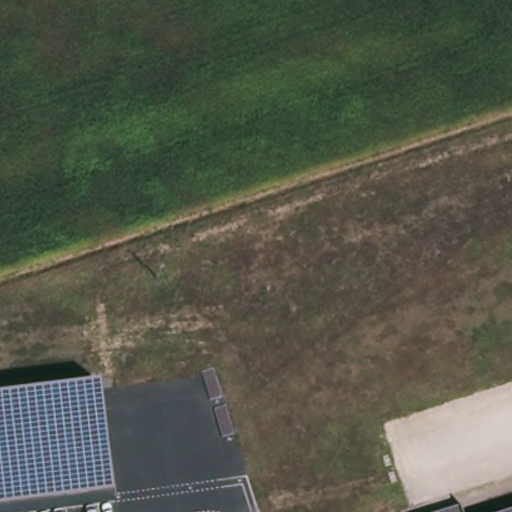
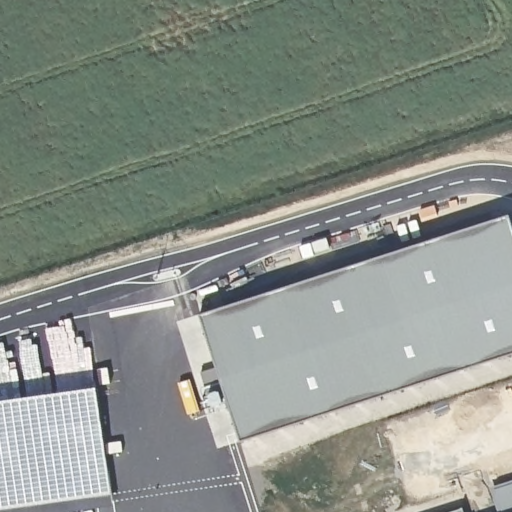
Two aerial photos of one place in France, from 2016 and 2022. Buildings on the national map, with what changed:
new [(510,210),(512,218),(512,351),(241,439),(228,399),(212,404),(201,370),(217,364),(199,311),(510,210)]
unchanged [(97,391),(112,507),(75,512),(0,512),(0,404),(97,391)]
unchanged [(452,511),(452,512),(449,512),(452,511)]

